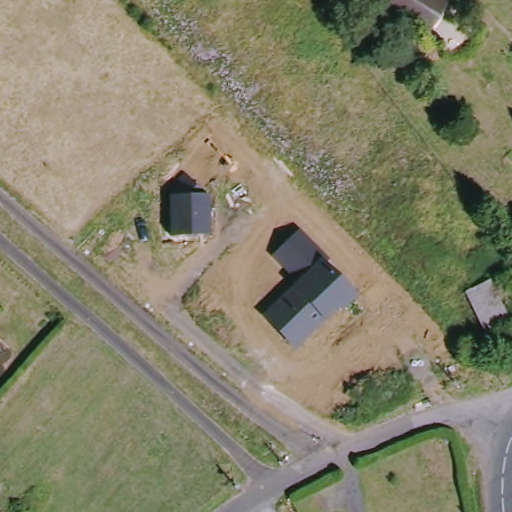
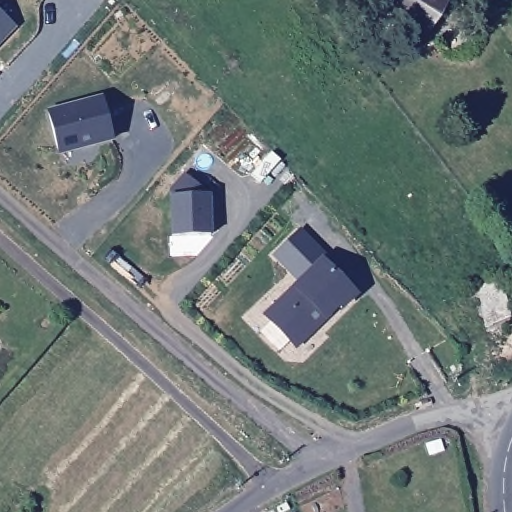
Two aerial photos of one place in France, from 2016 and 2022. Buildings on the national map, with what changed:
unchanged [(428,31),(392,11),(398,0),(435,0),(442,4),(428,31)]
new [(17,28),(0,45),(0,12),(17,28)]
new [(58,156),(48,111),(102,98),(113,142),(58,156)]
unchanged [(170,236),(169,196),(172,196),(168,186),(183,175),(210,195),(212,237),(170,236)]
unchanged [(295,283),(272,258),(299,229),(330,260),(323,262),(360,296),(327,323),(295,351),(261,315),(295,283)]
unchanged [(489,282),(510,322),(487,334),(467,294),(489,282)]

